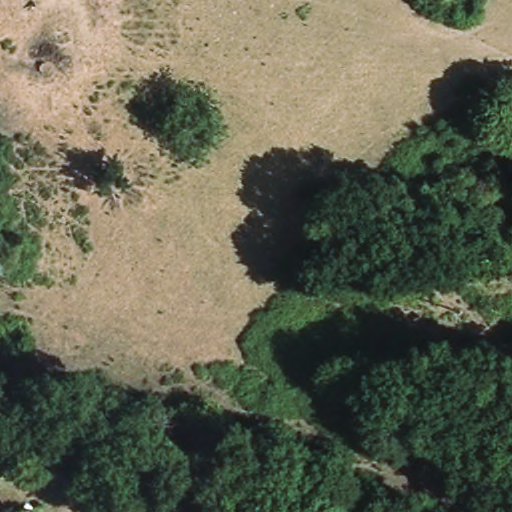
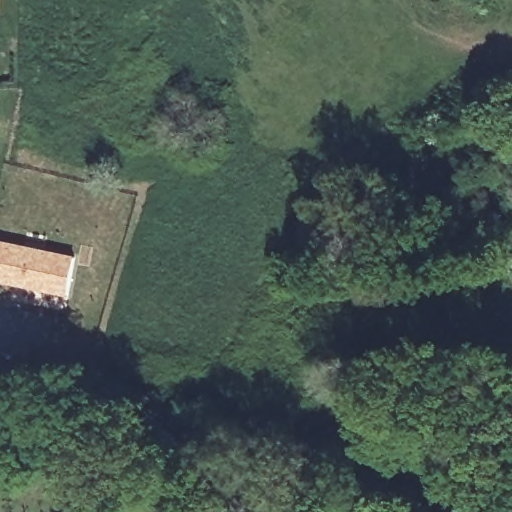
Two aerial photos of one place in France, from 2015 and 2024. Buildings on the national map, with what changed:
new [(77,254),(66,296),(0,281),(0,238),(77,254)]

